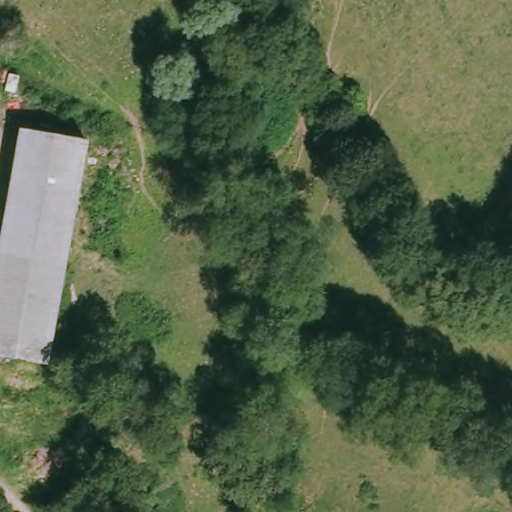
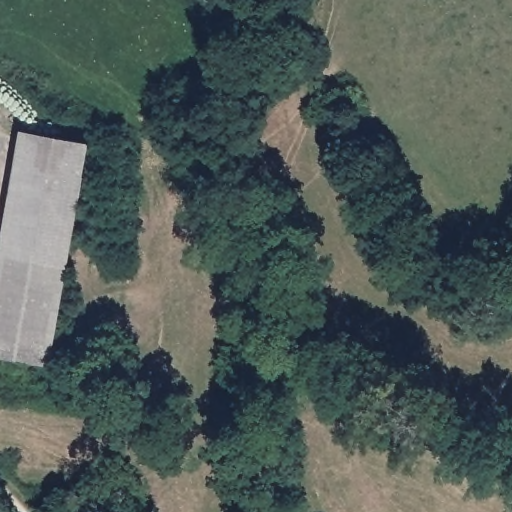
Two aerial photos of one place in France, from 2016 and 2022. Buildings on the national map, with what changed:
unchanged [(47,367),(0,359),(0,248),(20,131),(85,142),(47,367)]

